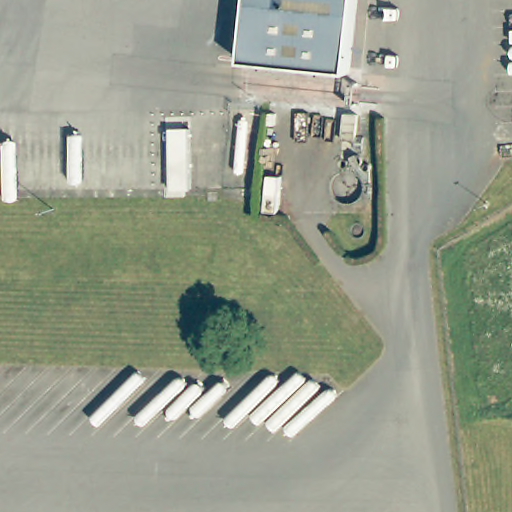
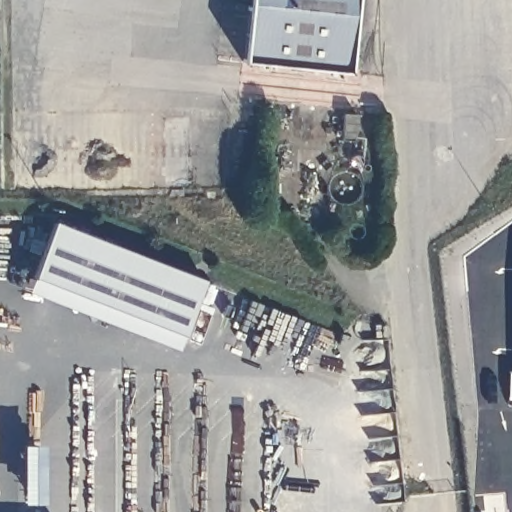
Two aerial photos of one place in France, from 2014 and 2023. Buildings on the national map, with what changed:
unchanged [(348,73),(241,62),(248,0),(356,0),(348,73)]
new [(177,349),(28,292),(55,222),(206,280),(177,349)]

